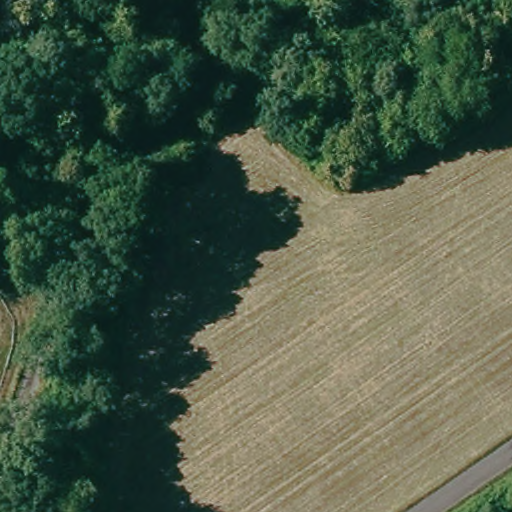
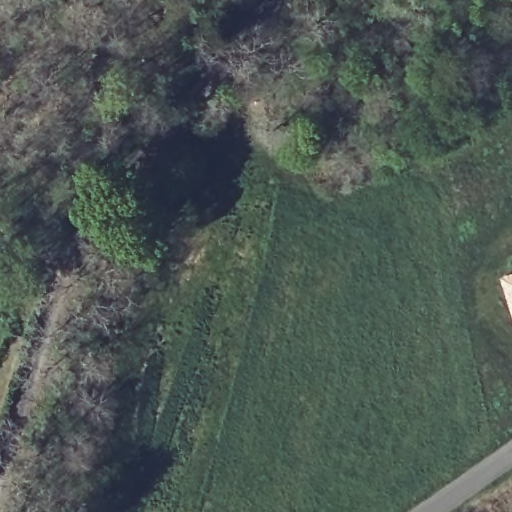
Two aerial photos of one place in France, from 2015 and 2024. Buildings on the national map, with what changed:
new [(512,274),(512,310),(502,277),(512,274)]

